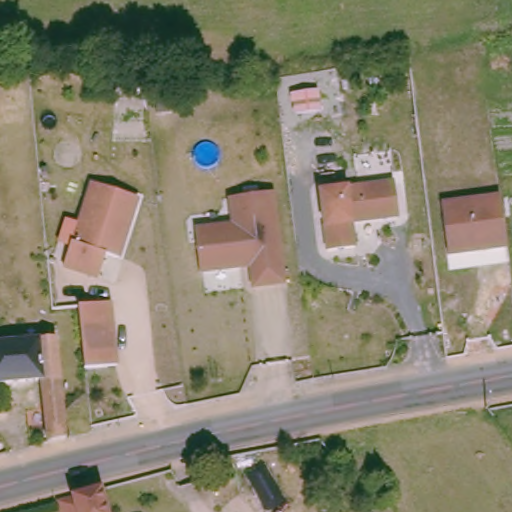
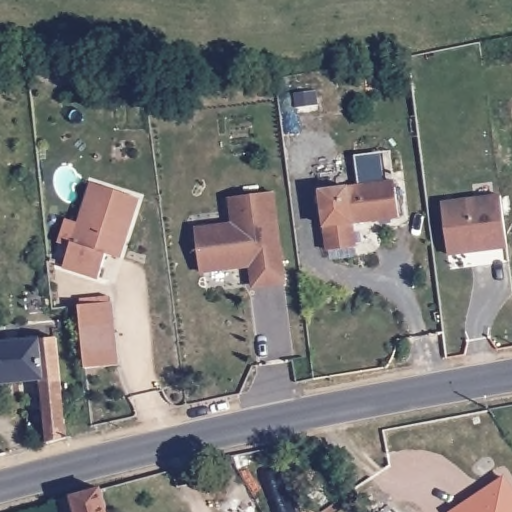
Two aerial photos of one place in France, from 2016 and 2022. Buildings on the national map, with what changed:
unchanged [(319,90),(321,111),(298,114),(295,93),(319,90)]
unchanged [(357,220),(360,244),(334,247),(325,188),(400,179),(405,214),(357,220)]
unchanged [(130,196),(139,199),(136,208),(130,228),(119,258),(107,254),(99,278),(64,266),(72,243),(80,245),(87,226),(81,224),(94,184),(126,194),(130,196)]
unchanged [(212,269),(208,239),(207,228),(230,224),(246,223),(242,195),(270,192),(281,282),(266,284),(263,263),(255,264),(212,269)]
unchanged [(440,200),(501,192),(508,244),(448,254),(440,200)]
unchanged [(111,302),(118,364),(86,368),(79,305),(111,302)]
unchanged [(47,442),(42,381),(0,384),(0,343),(62,337),(71,439),(47,442)]
new [(503,478),(512,491),(512,512),(455,512),(503,478)]
unchanged [(98,488),(105,512),(55,512),(52,501),(98,488)]

